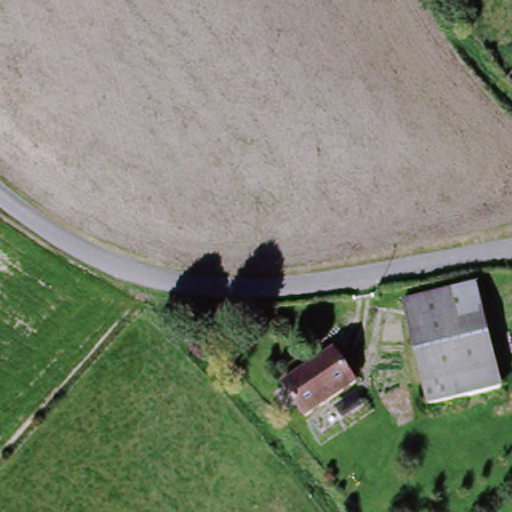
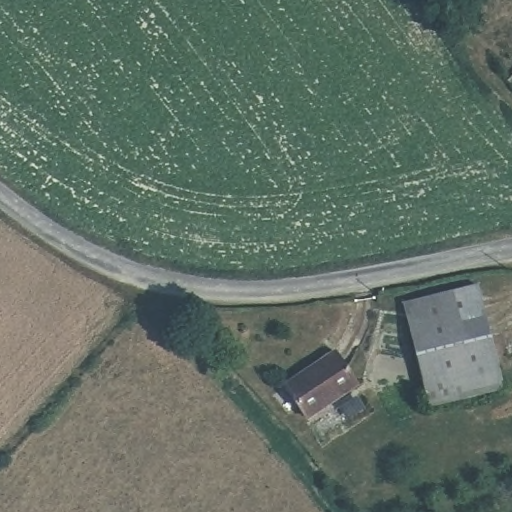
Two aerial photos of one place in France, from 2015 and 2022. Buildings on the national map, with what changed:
unchanged [(473,289),(502,389),(431,410),(402,310),(473,289)]
unchanged [(284,391),(331,357),(354,388),(307,422),(284,391)]

